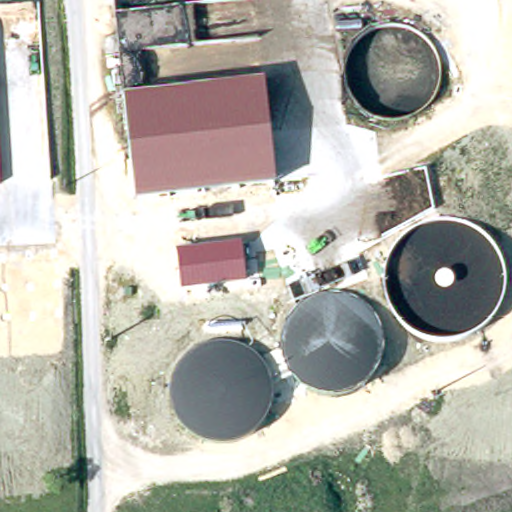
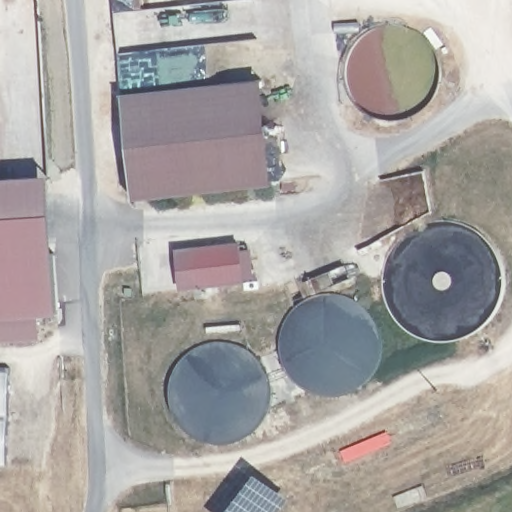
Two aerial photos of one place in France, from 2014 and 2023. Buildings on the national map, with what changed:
unchanged [(262,80),(274,185),(134,200),(124,93),(262,80)]
new [(0,320),(0,177),(50,174),(60,315),(0,320)]
unchanged [(240,244),(245,283),(179,292),(174,250),(240,244)]
new [(0,464),(0,368),(11,368),(6,465),(0,464)]

